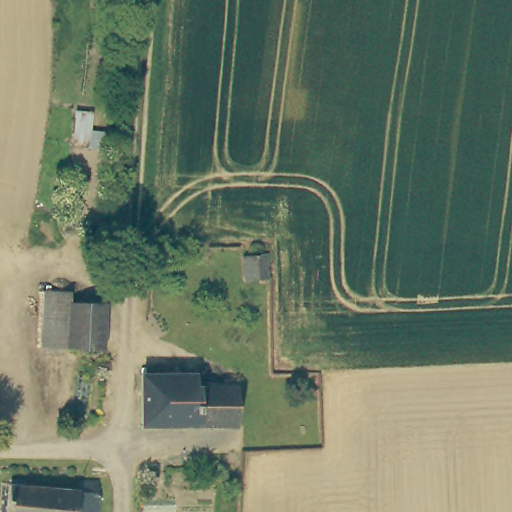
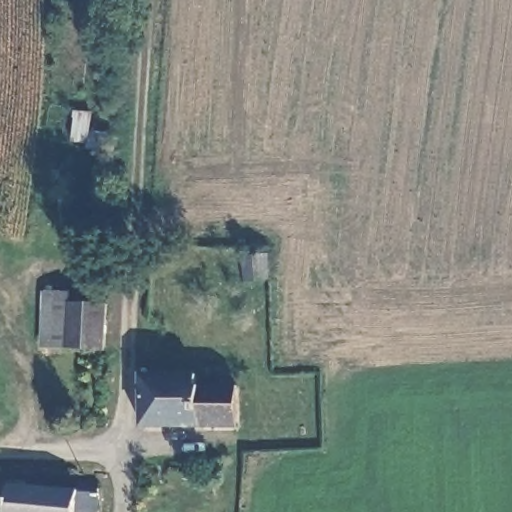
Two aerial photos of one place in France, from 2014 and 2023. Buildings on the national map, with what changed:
unchanged [(88,137),(73,136),(74,106),(89,107),(88,137)]
unchanged [(272,277),(250,279),(248,256),(271,254),(272,277)]
unchanged [(65,344),(64,352),(45,351),(47,288),(70,288),(70,298),(106,299),(103,345),(65,344)]
unchanged [(142,372),(197,373),(198,383),(238,384),(235,424),(142,425),(142,372)]
unchanged [(76,487),(76,480),(99,482),(98,494),(75,492),(74,512),(4,512),(7,482),(76,487)]

